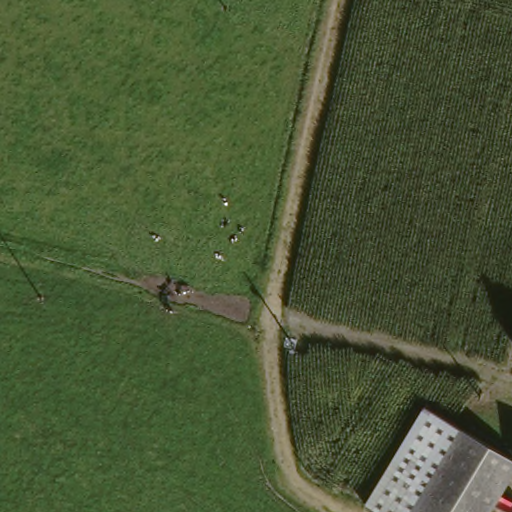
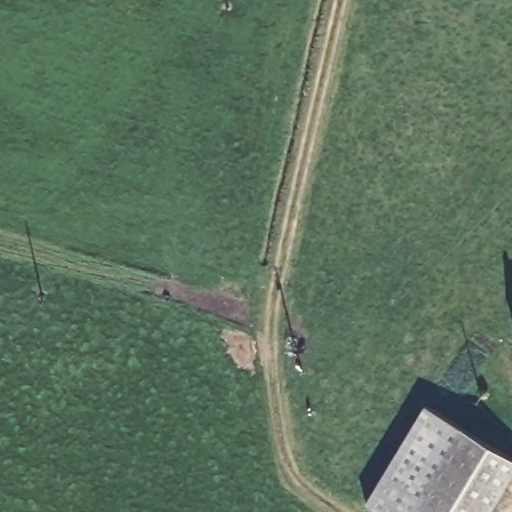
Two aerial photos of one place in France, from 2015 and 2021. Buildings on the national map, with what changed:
unchanged [(424,405),(461,423),(412,512),(383,512),(366,502),(424,405)]
unchanged [(412,512),(461,423),(512,452),(512,482),(495,512),(412,512)]

